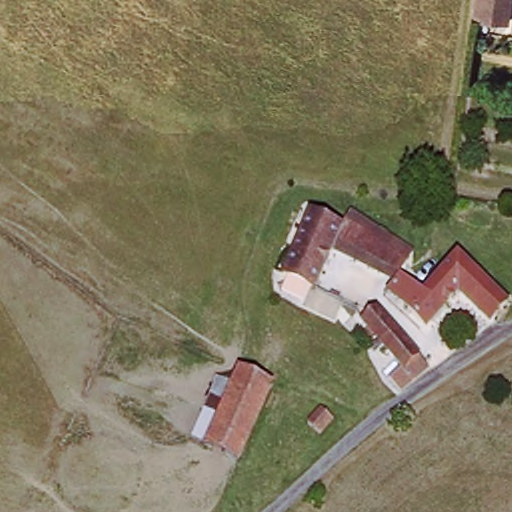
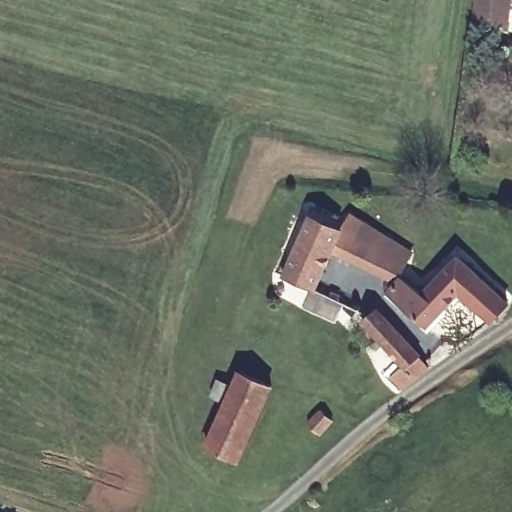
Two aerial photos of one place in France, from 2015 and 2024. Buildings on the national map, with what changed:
unchanged [(480,26),(481,0),(512,0),(512,29),(480,26)]
unchanged [(329,255),(314,296),(282,284),(305,221),(337,232),(329,255)]
unchanged [(402,281),(330,256),(337,232),(342,223),(414,248),(402,281)]
unchanged [(430,294),(460,255),(512,295),(512,305),(498,323),(463,296),(434,327),(393,296),(405,279),(430,294)]
unchanged [(402,373),(412,362),(367,329),(380,311),(443,357),(413,383),(402,373)]
unchanged [(250,371),(282,387),(245,461),(212,444),(250,371)]
unchanged [(332,394),(345,407),(326,427),(312,414),(332,394)]

